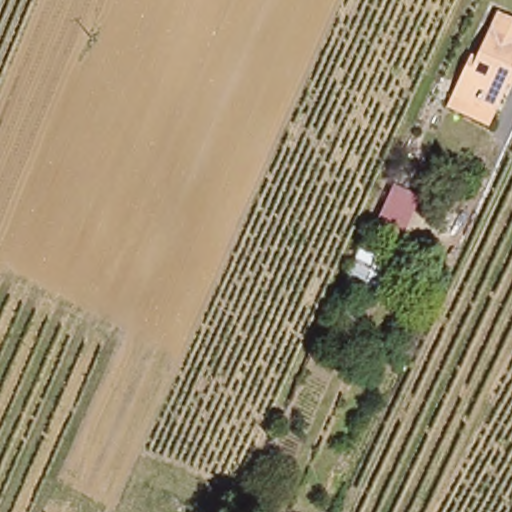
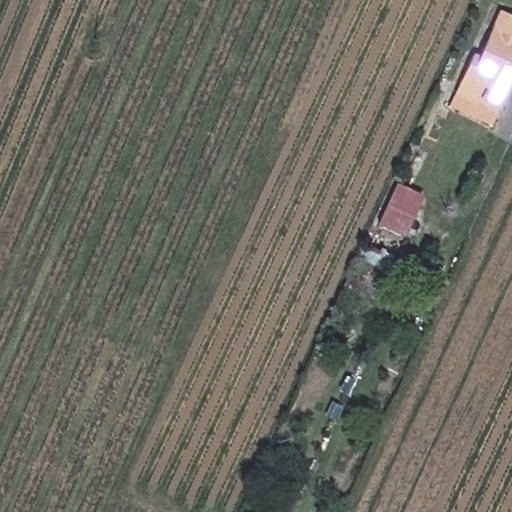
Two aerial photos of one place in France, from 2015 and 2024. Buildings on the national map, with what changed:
unchanged [(452,93),(465,63),(471,66),(493,19),(512,27),(512,74),(494,112),(490,122),(447,103),(452,93)]

